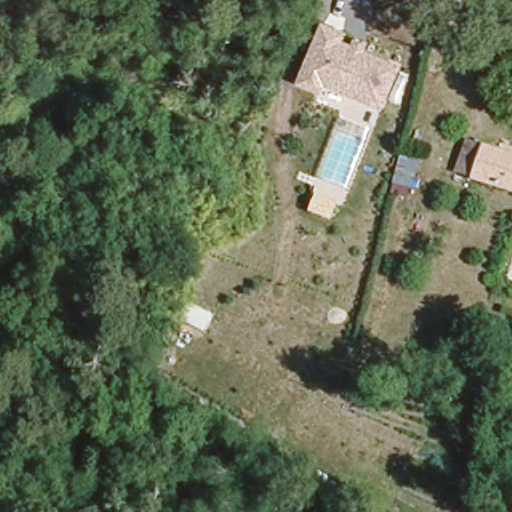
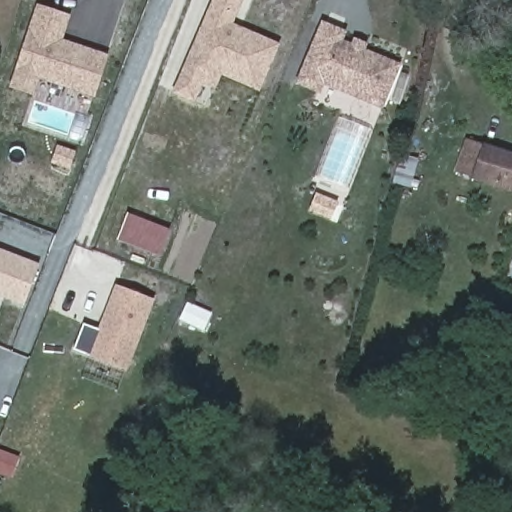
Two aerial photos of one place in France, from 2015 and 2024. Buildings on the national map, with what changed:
new [(230,25),(277,45),(259,92),(218,75),(205,107),(174,94),(214,0),(241,0),(230,25)]
new [(66,17),(59,41),(108,57),(96,96),(40,79),(34,94),(11,87),(37,8),(66,17)]
unchanged [(383,111),(326,86),(322,95),(296,84),(323,21),(348,31),(344,40),(353,44),(354,37),(369,43),(367,50),(403,65),(383,111)]
unchanged [(474,154),(461,150),(465,137),(512,152),(512,187),(468,172),(474,154)]
new [(26,305),(0,295),(0,251),(41,268),(26,305)]
new [(154,302),(127,372),(88,358),(116,287),(154,302)]

